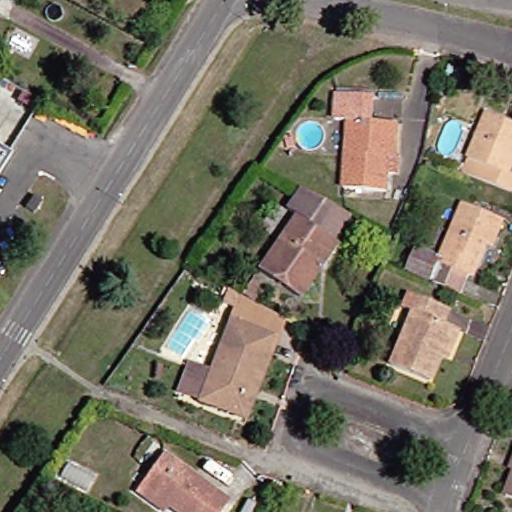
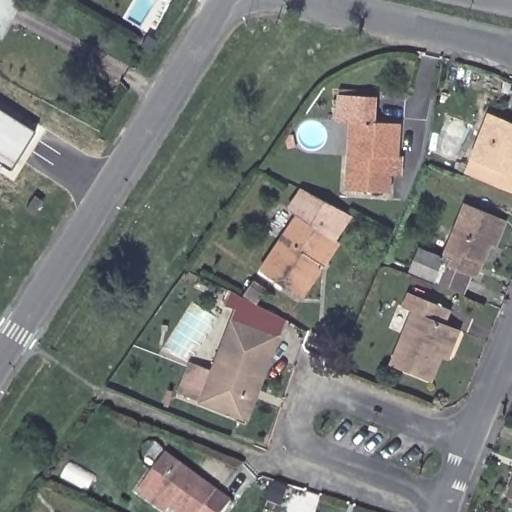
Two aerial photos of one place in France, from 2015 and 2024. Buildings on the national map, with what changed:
unchanged [(326,117),(328,92),(366,95),(364,120),(391,122),(389,156),(382,155),(380,190),(337,187),(341,118),(326,117)]
new [(0,161),(0,109),(36,132),(12,169),(0,161)]
unchanged [(461,172),(485,113),(512,124),(512,160),(507,172),(512,175),(512,192),(461,172)]
demolished [(0,166),(0,150),(7,155),(0,166)]
unchanged [(293,298),(250,269),(303,192),(348,216),(330,242),(318,261),(293,298)]
unchanged [(22,213),(30,200),(38,205),(30,218),(22,213)]
unchanged [(497,226),(488,249),(482,246),(468,280),(463,277),(455,297),(425,285),(400,275),(409,252),(434,262),(456,208),(497,226)]
unchanged [(258,290),(248,303),(235,293),(245,280),(258,290)]
unchanged [(440,359),(433,356),(422,382),(382,366),(405,311),(393,306),(399,292),(443,310),(438,323),(445,327),(452,330),(440,359)]
unchanged [(239,421),(231,417),(190,401),(223,318),(266,336),(260,352),(265,353),(239,421)]
unchanged [(502,473),(512,450),(512,505),(500,500),(510,476),(502,473)]
unchanged [(140,488),(164,457),(228,505),(223,512),(172,512),(169,509),(166,512),(158,512),(135,495),(140,488)]

